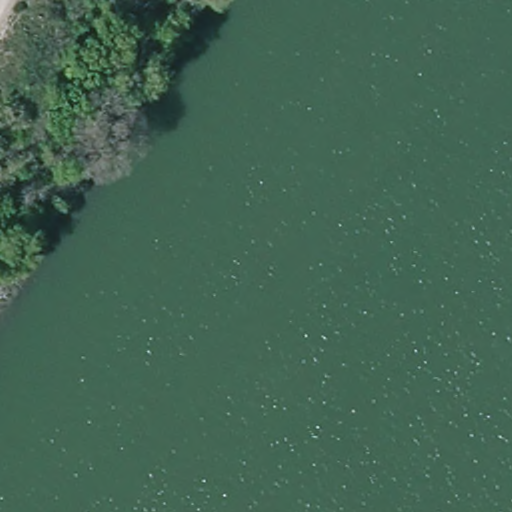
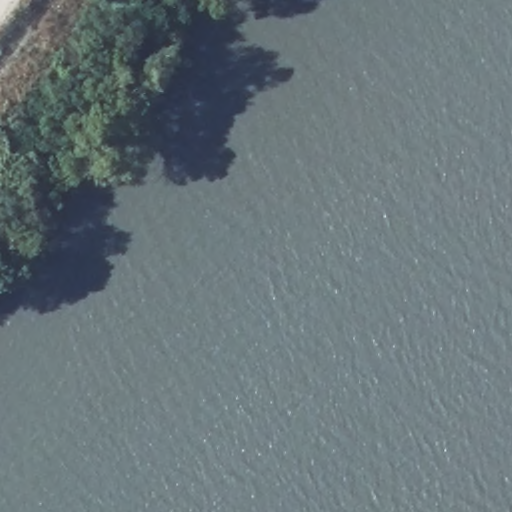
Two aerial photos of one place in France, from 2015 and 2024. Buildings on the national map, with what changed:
[]

